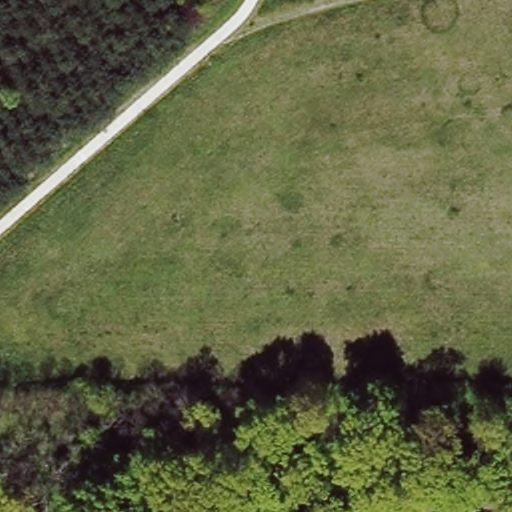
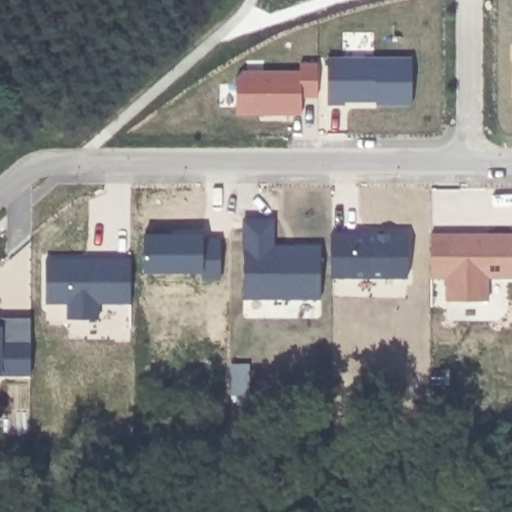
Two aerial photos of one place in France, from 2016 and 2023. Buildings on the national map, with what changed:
new [(512,45),(512,96),(511,96),(512,45)]
new [(327,57),(411,57),(411,104),(375,105),(375,98),(367,98),(367,101),(344,101),(343,104),(327,105),(327,57)]
new [(235,76),(241,70),(300,70),(300,63),(316,62),(316,96),(300,96),(300,115),(235,114),(235,76)]
new [(242,219),(272,219),(272,246),(320,246),(320,297),(242,297),(242,219)]
new [(330,233),(407,234),(407,276),(330,276),(330,233)]
new [(143,234),(170,234),(170,236),(182,236),(182,234),(202,234),(202,239),(220,239),(220,278),(201,278),(201,271),(143,271),(143,234)]
new [(430,234),(512,234),(512,277),(487,277),(486,300),(446,300),(445,277),(430,276),(430,234)]
new [(86,258),(112,258),(130,258),(130,302),(97,302),(97,318),(66,319),(67,302),(45,302),(45,258),(86,258)]
new [(30,374),(0,374),(0,317),(30,317),(30,374)]

